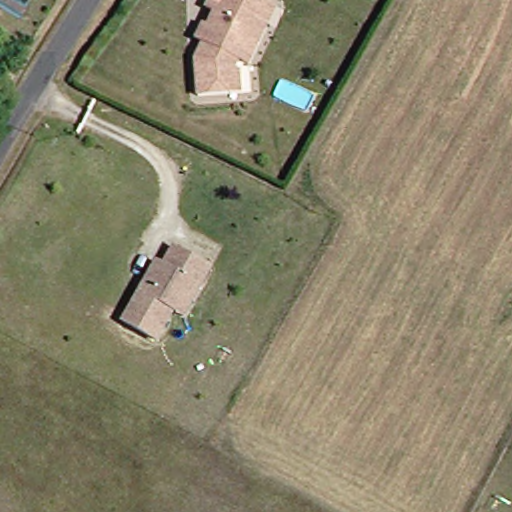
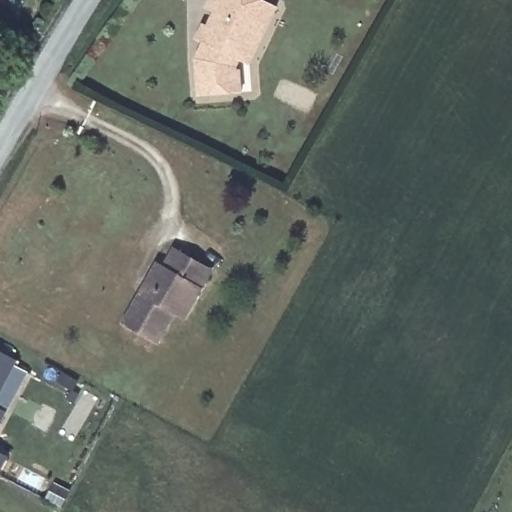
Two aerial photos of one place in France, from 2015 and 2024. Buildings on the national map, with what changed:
unchanged [(242,88),(199,92),(197,52),(205,38),(201,35),(215,6),(210,4),(212,0),(269,0),(277,4),(248,60),(239,56),(235,66),(240,68),(242,88)]
unchanged [(176,311),(159,342),(126,322),(161,264),(166,268),(177,248),(215,271),(195,305),(187,318),(176,311)]
new [(15,366),(27,372),(6,412),(0,424),(0,351),(17,361),(15,366)]
new [(0,471),(0,453),(7,457),(0,471)]

